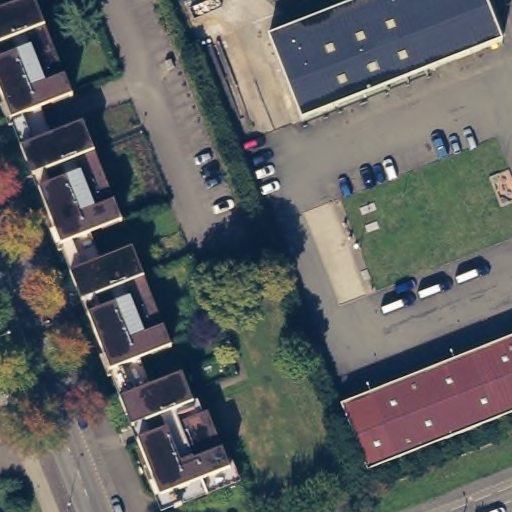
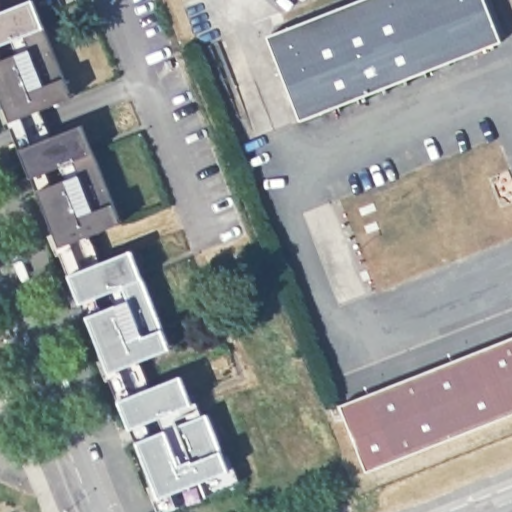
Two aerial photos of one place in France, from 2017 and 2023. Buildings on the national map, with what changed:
unchanged [(53,100),(51,95),(45,81),(34,86),(41,105),(12,117),(0,88),(0,7),(18,0),(36,0),(45,22),(71,87),(73,93),(53,100)]
unchanged [(493,0),(507,36),(306,116),(273,31),(352,0),(493,0)]
unchanged [(102,226),(100,221),(94,207),(83,211),(90,230),(61,242),(39,186),(38,186),(21,145),(83,120),(94,147),(120,213),(122,219),(102,226)]
unchanged [(151,351),(149,346),(144,332),(132,337),(140,356),(110,368),(88,311),(87,312),(81,298),(72,302),(68,292),(75,290),(77,297),(80,296),(70,270),(133,245),(144,273),(169,339),(171,344),(151,351)]
unchanged [(512,333),(512,410),(367,467),(341,400),(512,333)]
unchanged [(206,491),(201,477),(193,458),(182,462),(189,481),(160,493),(138,437),(136,437),(131,424),(121,427),(121,425),(130,422),(120,395),(182,370),(193,398),(198,412),(208,408),(230,465),(236,480),(206,491)]

